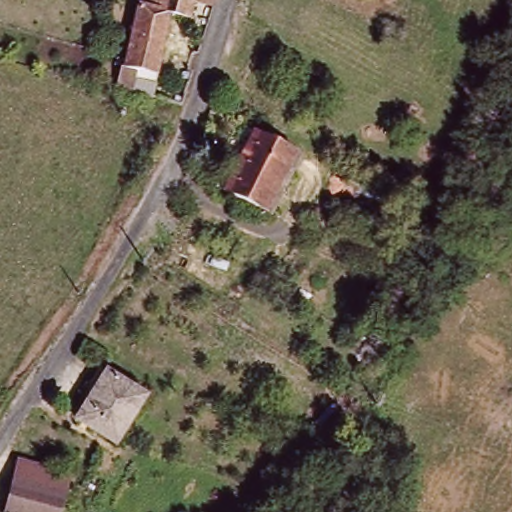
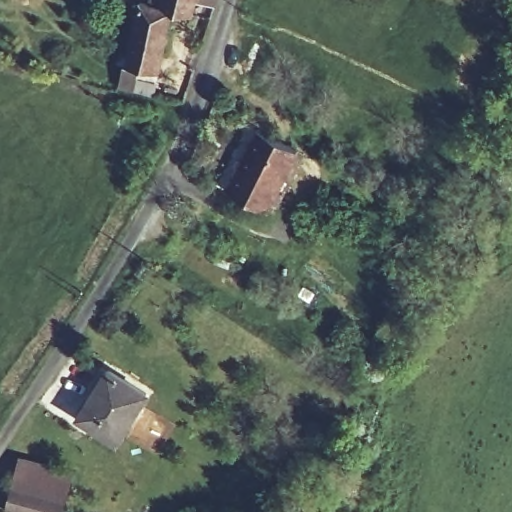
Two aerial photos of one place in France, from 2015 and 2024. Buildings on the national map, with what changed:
unchanged [(172,10),(152,90),(120,82),(137,2),(158,6),(160,0),(194,0),(190,14),(172,10)]
unchanged [(250,126),(300,150),(272,210),(221,185),(250,126)]
unchanged [(77,416),(107,368),(145,392),(115,440),(77,416)]
unchanged [(67,467),(62,512),(12,512),(17,462),(67,467)]

